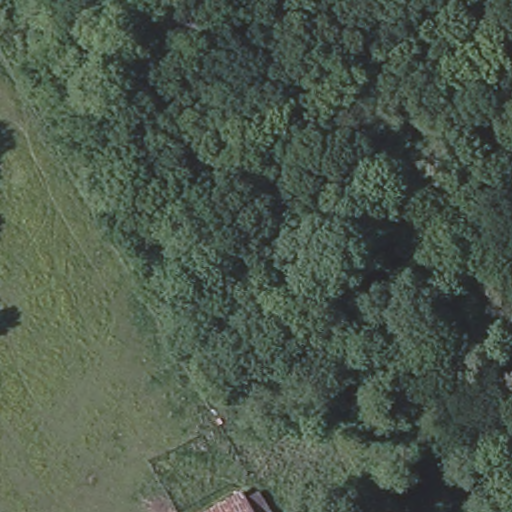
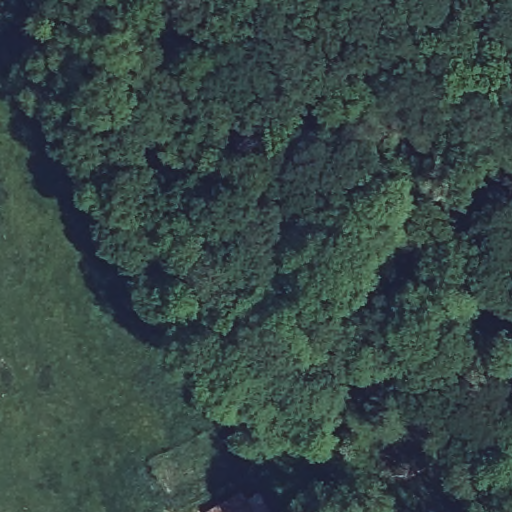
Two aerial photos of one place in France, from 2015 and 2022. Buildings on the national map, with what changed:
unchanged [(244,512),(215,512),(237,500),(244,512)]

